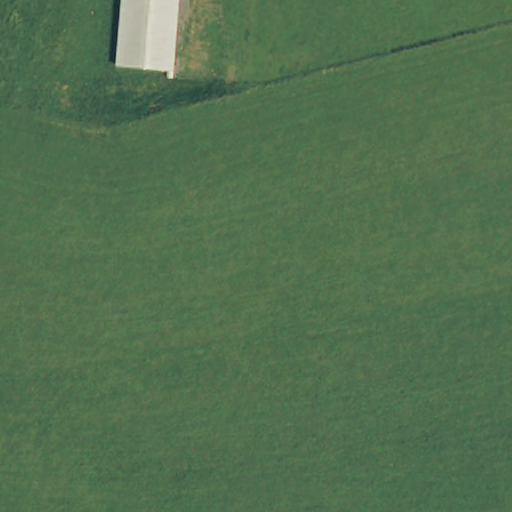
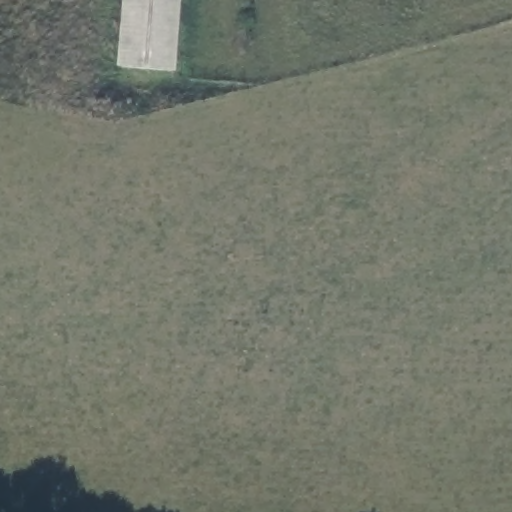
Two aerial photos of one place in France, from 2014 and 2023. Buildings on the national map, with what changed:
unchanged [(126,0),(174,0),(168,70),(120,66),(126,0)]

